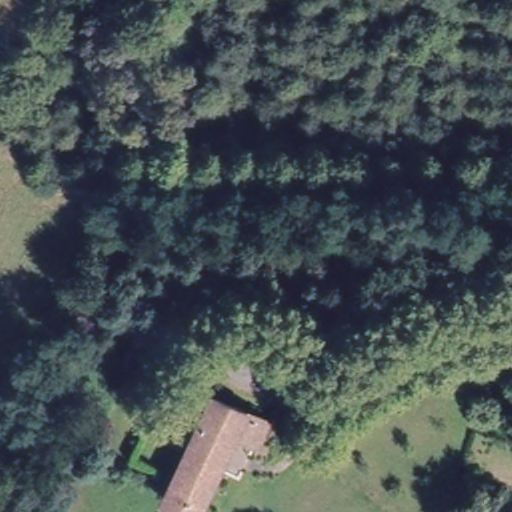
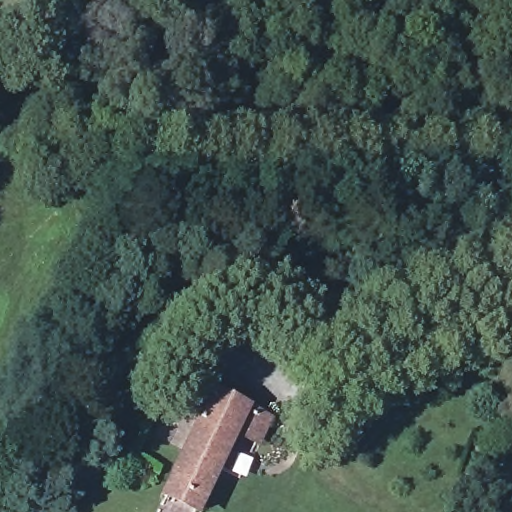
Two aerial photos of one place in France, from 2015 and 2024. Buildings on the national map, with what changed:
unchanged [(212,466),(197,498),(162,497),(172,473),(205,396),(236,409),(226,432),(212,466)]

